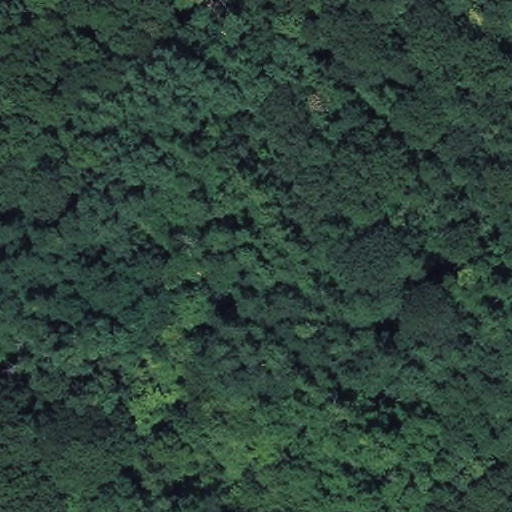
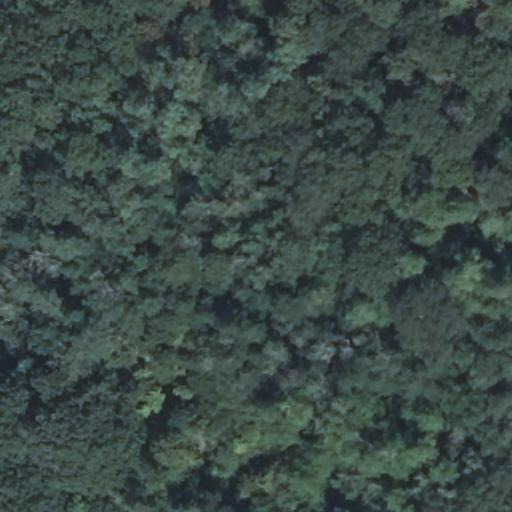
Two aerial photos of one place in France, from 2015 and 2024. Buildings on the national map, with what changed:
[]

